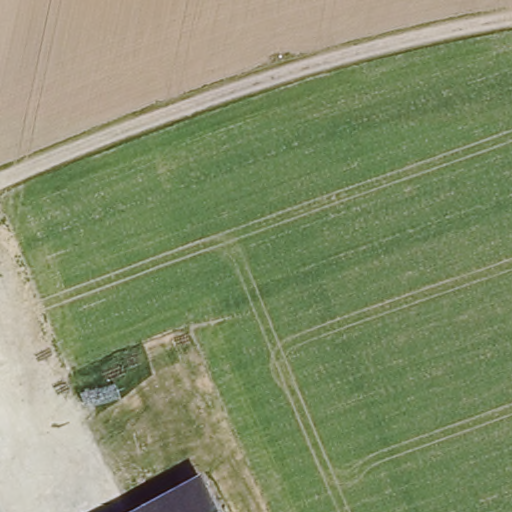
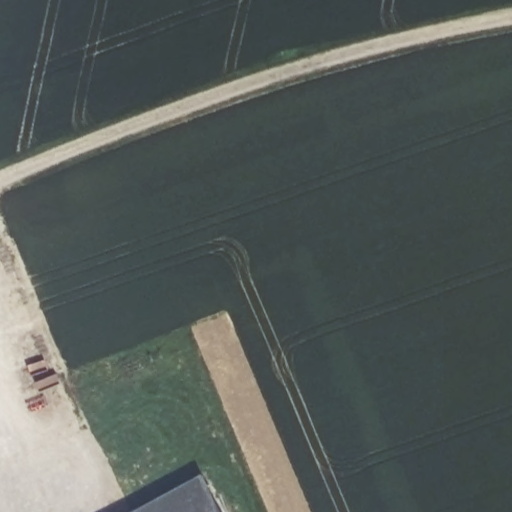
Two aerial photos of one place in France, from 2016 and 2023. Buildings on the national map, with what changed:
unchanged [(233,512),(120,512),(209,463),(233,512)]

